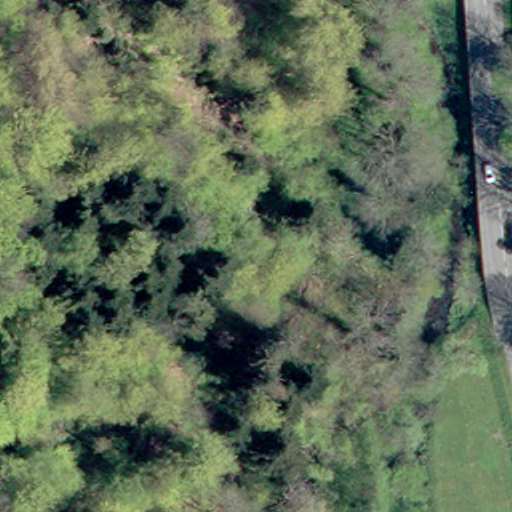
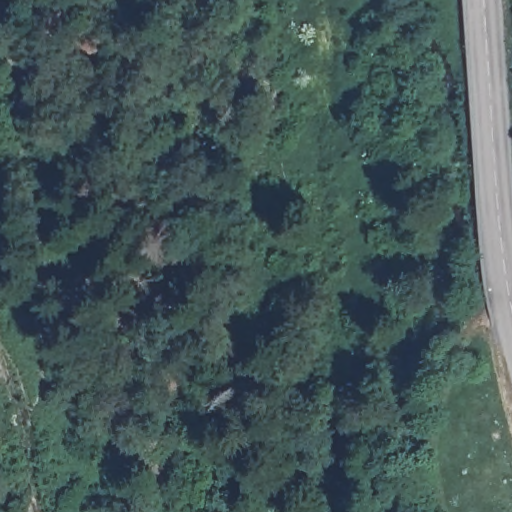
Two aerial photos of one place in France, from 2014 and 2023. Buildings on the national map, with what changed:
unchanged [(358,17),(357,30),(346,28),(347,16),(358,17)]

